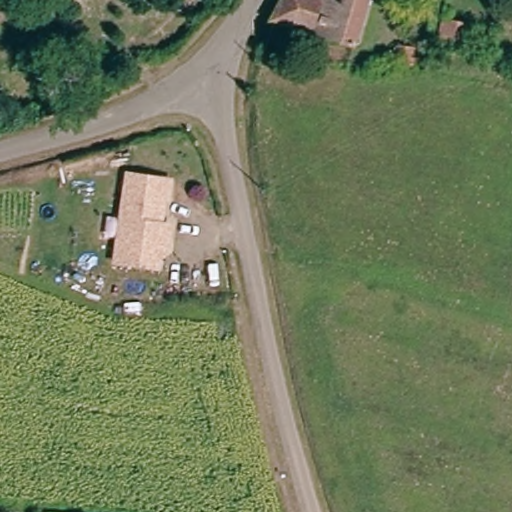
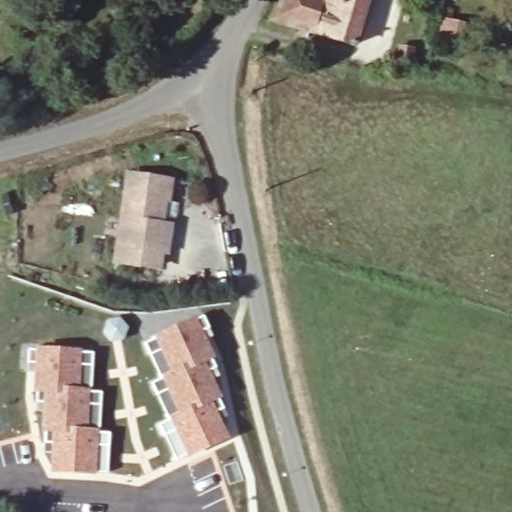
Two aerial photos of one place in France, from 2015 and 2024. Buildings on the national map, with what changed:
unchanged [(357,39),(275,16),(284,0),(370,0),(357,39)]
unchanged [(397,41),(400,31),(413,35),(412,46),(397,41)]
unchanged [(142,261),(117,258),(130,172),(169,177),(162,219),(172,221),(167,245),(159,243),(156,262),(142,261)]
new [(106,317),(119,315),(130,326),(122,341),(111,343),(100,333),(106,317)]
new [(202,315),(214,338),(207,341),(217,358),(212,360),(217,369),(210,373),(222,398),(169,422),(151,385),(161,379),(144,341),(202,315)]
new [(36,350),(37,346),(81,348),(81,352),(93,352),(92,393),(102,393),(101,433),(88,433),(87,435),(44,434),(46,404),(37,403),(37,391),(35,391),(35,364),(28,364),(30,350),(36,350)]
new [(167,420),(169,422),(220,399),(225,409),(224,409),(227,417),(221,420),(230,438),(187,458),(186,454),(176,459),(159,425),(167,420)]
new [(87,435),(88,433),(101,433),(101,431),(110,433),(107,472),(96,472),(95,475),(50,473),(51,444),(44,443),(44,434),(87,435)]

